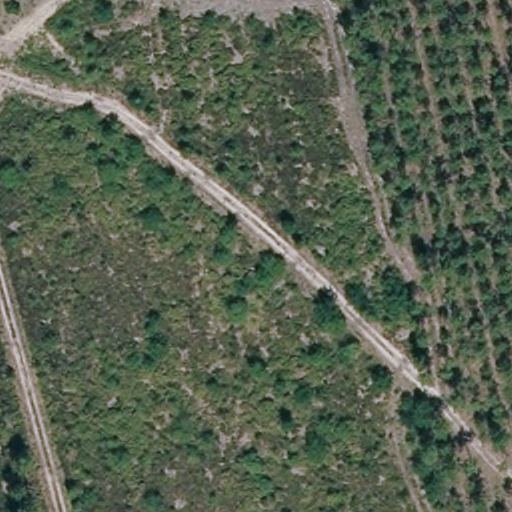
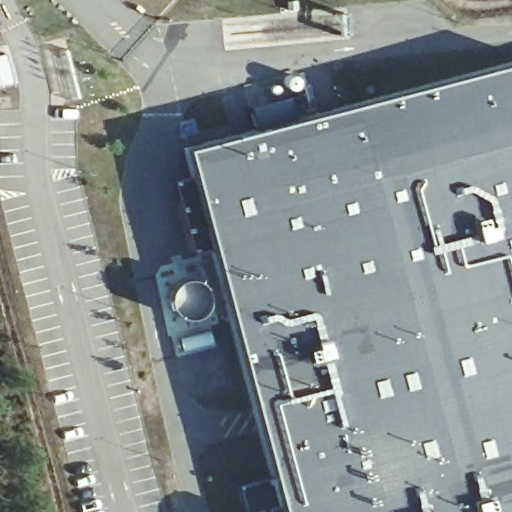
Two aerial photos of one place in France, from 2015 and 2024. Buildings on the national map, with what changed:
new [(271,478),(212,249),(191,254),(172,180),(193,175),(185,148),(512,62),(512,512),(245,512),(239,486),(271,478)]

